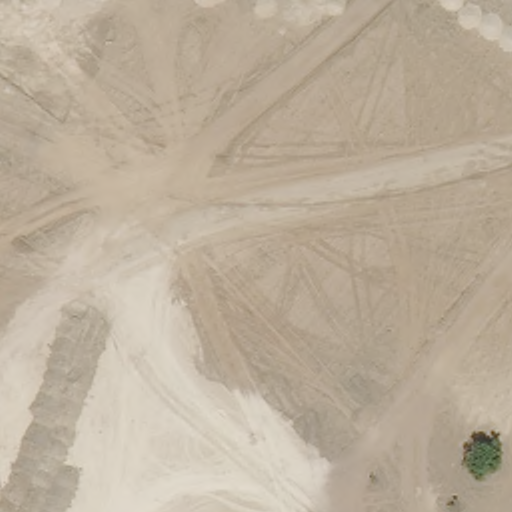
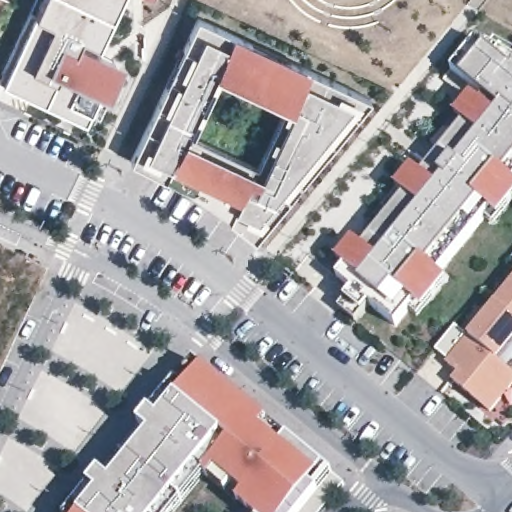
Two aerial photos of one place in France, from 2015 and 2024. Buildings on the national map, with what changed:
new [(2,84),(28,28),(23,25),(35,0),(124,0),(107,40),(99,54),(114,61),(106,78),(100,91),(109,95),(101,112),(94,127),(2,84)]
new [(222,215),(204,202),(185,191),(156,174),(153,173),(179,119),(155,108),(165,86),(183,47),(197,17),(251,43),(289,61),(352,90),(370,98),(349,124),(326,151),(295,189),(254,239),(222,215)]
new [(500,40),(512,51),(512,66),(492,49),(500,40)]
new [(417,318),(407,311),(394,326),(369,305),(355,322),(338,308),(385,251),(369,237),(361,231),(410,172),(417,178),(422,173),(485,97),(452,70),(476,41),(492,49),(512,66),(512,201),(493,225),(484,218),(436,276),(445,283),(417,318)]
new [(419,135),(431,145),(467,101),(442,81),(452,70),(485,97),(422,173),(401,157),(419,135)]
new [(512,285),(512,347),(499,363),(512,374),(512,385),(490,411),(454,381),(460,373),(448,363),(449,361),(435,350),(455,326),(469,338),(512,285)]
new [(194,361),(344,483),(321,512),(251,512),(205,474),(173,512),(67,512),(194,361)]

